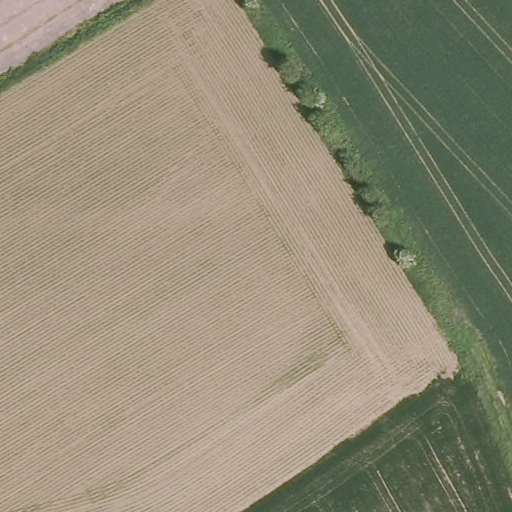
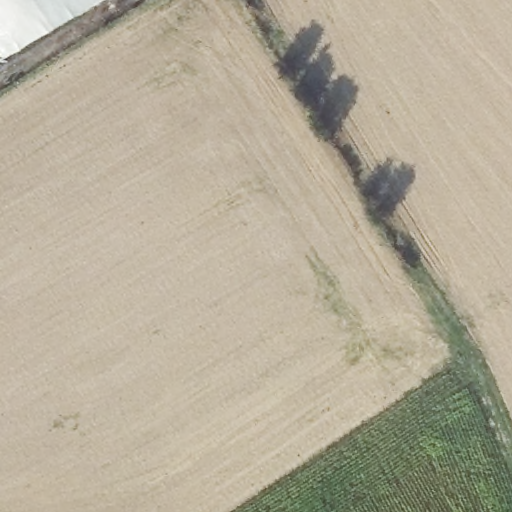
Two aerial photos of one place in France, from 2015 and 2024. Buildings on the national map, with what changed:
new [(0,51),(0,0),(91,0),(2,55),(0,51)]

